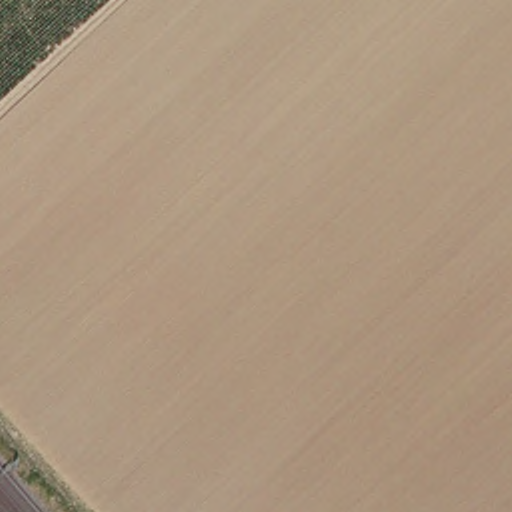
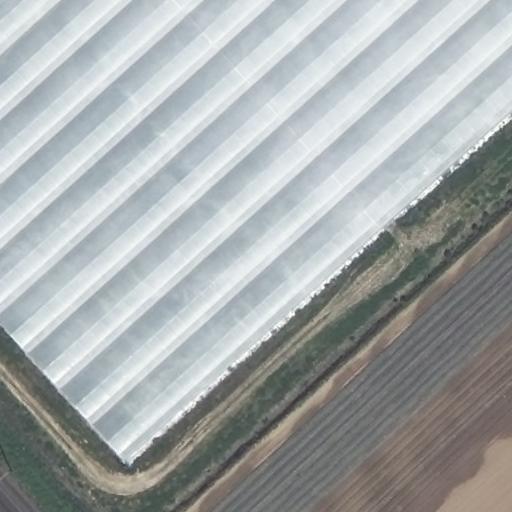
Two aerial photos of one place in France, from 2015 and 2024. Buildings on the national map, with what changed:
new [(512,113),(127,462),(0,321),(0,0),(512,0),(512,113)]

